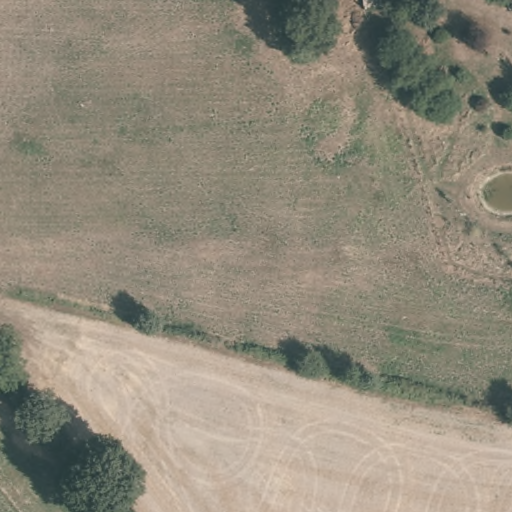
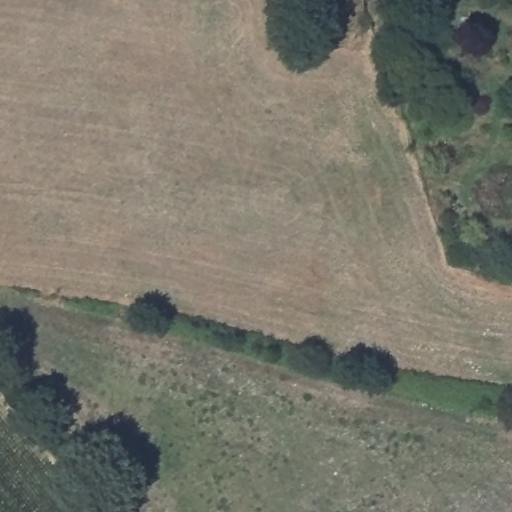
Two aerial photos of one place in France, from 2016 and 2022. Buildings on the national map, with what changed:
unchanged [(365,10),(364,0),(421,0),(421,1),(380,1),(380,9),(365,10)]

